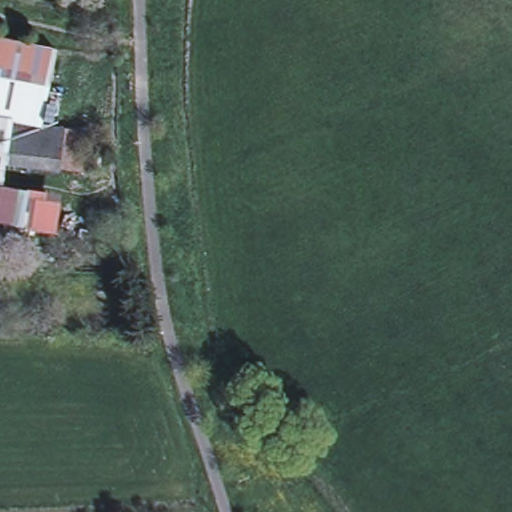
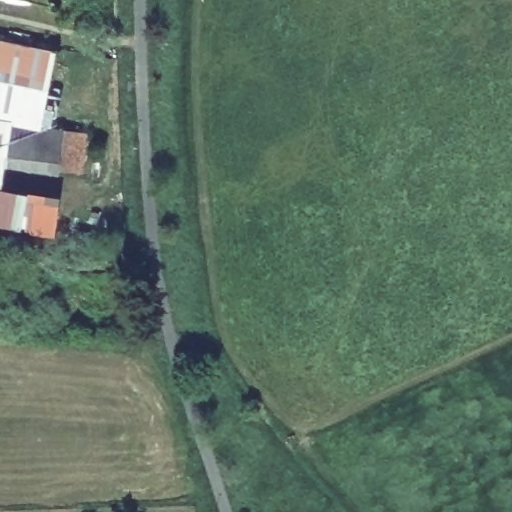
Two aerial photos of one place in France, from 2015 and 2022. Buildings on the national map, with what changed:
unchanged [(50,108),(0,97),(0,39),(62,52),(50,108)]
unchanged [(46,128),(0,119),(0,97),(50,108),(46,128)]
unchanged [(0,158),(0,119),(46,128),(92,132),(89,159),(87,172),(0,158)]
unchanged [(47,203),(61,205),(55,235),(10,227),(0,225),(0,185),(49,194),(47,203)]

